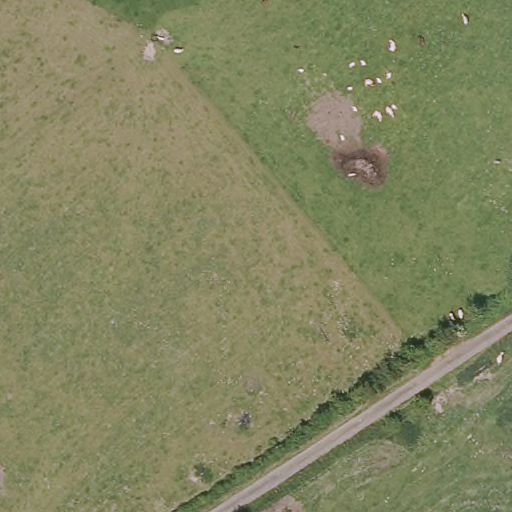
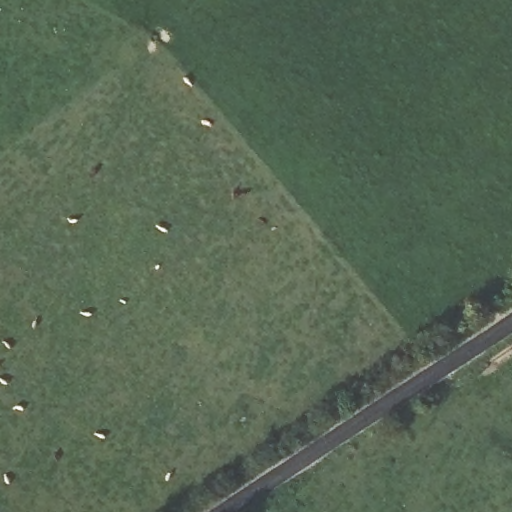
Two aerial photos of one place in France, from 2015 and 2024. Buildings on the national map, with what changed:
[]

